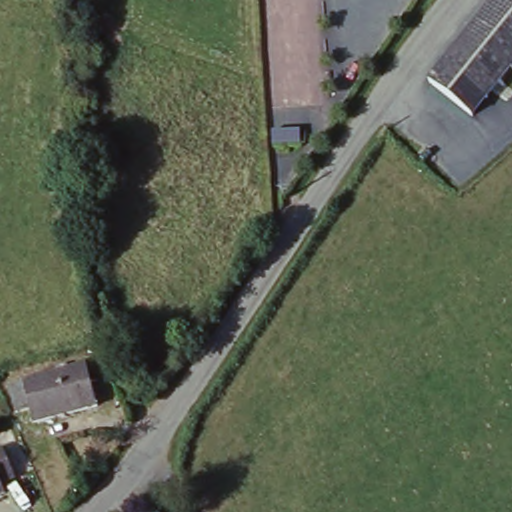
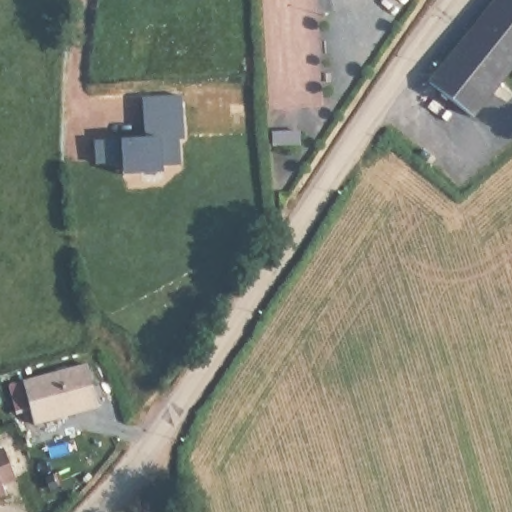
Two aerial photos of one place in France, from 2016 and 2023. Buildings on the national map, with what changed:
unchanged [(512,0),(512,60),(511,61),(472,114),(427,78),(488,0),(512,0)]
unchanged [(511,61),(512,60),(512,62),(511,61)]
new [(183,93),(184,135),(179,135),(179,162),(124,167),(126,159),(97,161),(97,141),(148,138),(144,96),(183,93)]
unchanged [(302,124),(303,136),(275,139),(274,127),(302,124)]
unchanged [(84,361),(95,399),(34,416),(29,403),(14,406),(8,381),(84,361)]
unchanged [(0,478),(0,443),(11,473),(0,478)]
unchanged [(0,488),(0,484),(1,488),(0,488)]

